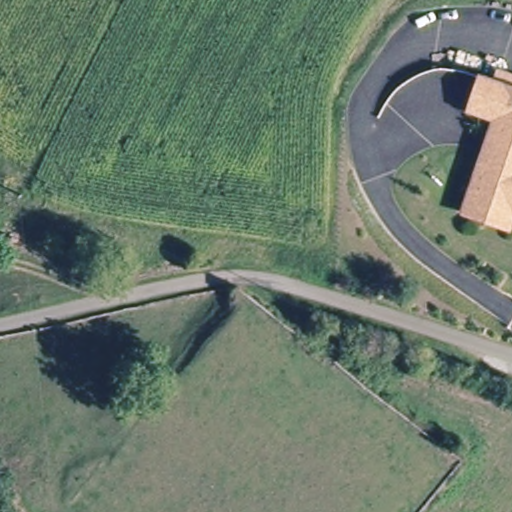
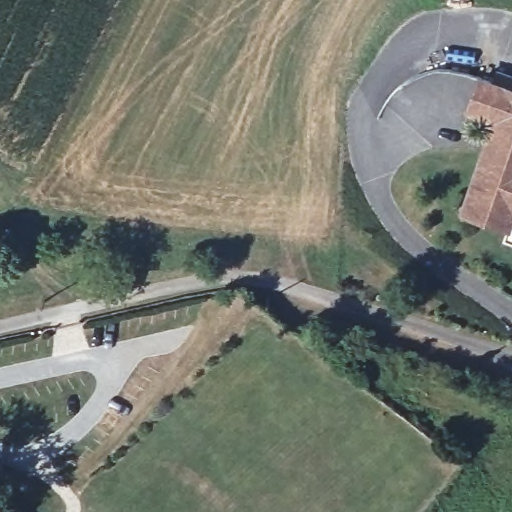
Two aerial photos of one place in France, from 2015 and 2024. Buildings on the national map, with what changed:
unchanged [(477,166),(483,167),(498,125),(466,115),(469,101),(476,82),(491,87),(494,75),(512,81),(512,220),(508,233),(460,219),(466,203),(477,166)]

